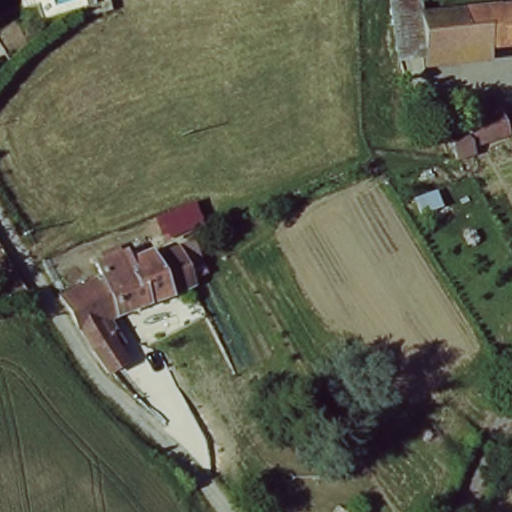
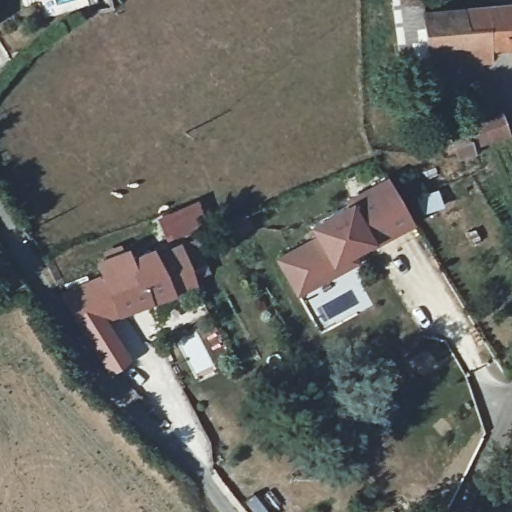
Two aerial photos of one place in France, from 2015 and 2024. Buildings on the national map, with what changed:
unchanged [(421,21),(418,5),(487,0),(512,0),(512,42),(427,49),(421,21)]
unchanged [(495,101),(512,97),(512,135),(458,151),(456,147),(451,136),(450,128),(499,114),(495,101)]
new [(313,235),(308,225),(351,201),(349,195),(388,175),(414,224),(370,249),(368,245),(355,253),(360,262),(296,297),(274,258),(313,235)]
unchanged [(156,256),(180,246),(196,283),(112,320),(131,361),(115,370),(93,341),(90,336),(63,293),(110,272),(103,257),(113,254),(131,248),(136,258),(154,250),(156,256)]

